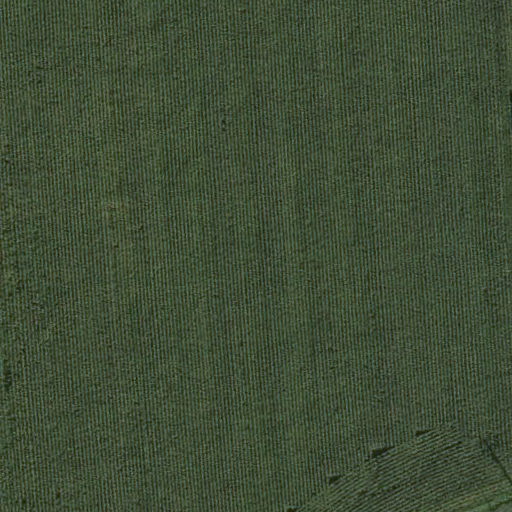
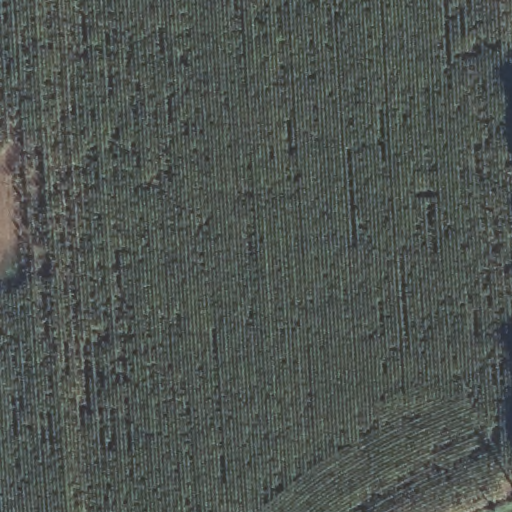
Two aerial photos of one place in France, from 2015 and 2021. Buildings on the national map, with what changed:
[]

